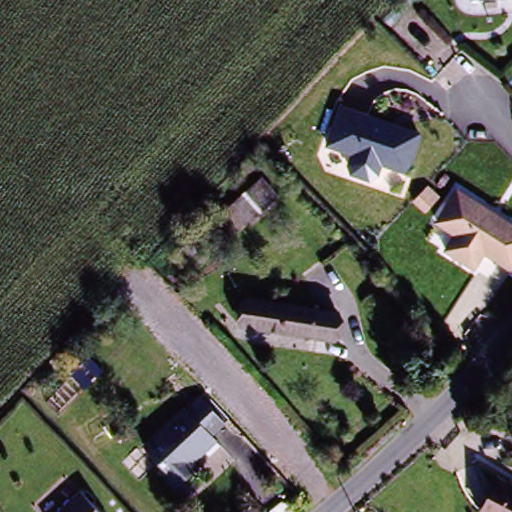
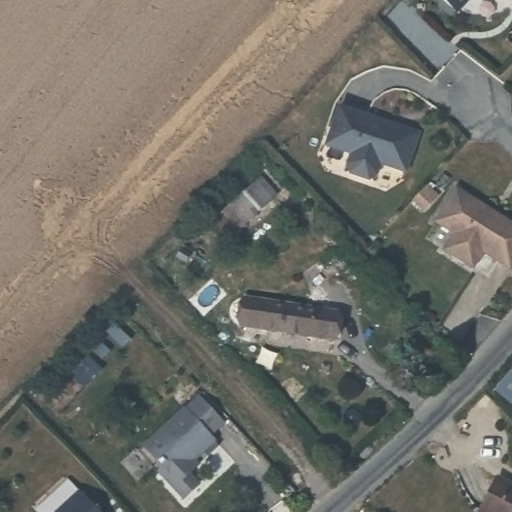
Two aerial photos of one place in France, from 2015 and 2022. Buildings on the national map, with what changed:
unchanged [(421,134),(410,175),(383,164),(370,180),(350,175),(347,167),(347,155),(325,145),(337,100),(421,134)]
unchanged [(294,181),(264,210),(246,189),(274,160),(294,181)]
unchanged [(512,273),(485,255),(475,271),(443,250),(451,235),(434,221),(455,187),(512,224),(512,273)]
unchanged [(325,337),(255,325),(257,312),(240,311),(243,297),(260,300),(330,312),(325,337)]
new [(512,371),(512,407),(493,392),(512,371)]
unchanged [(182,414),(185,416),(203,400),(204,401),(227,425),(208,442),(217,452),(206,461),(202,456),(190,467),(195,472),(186,479),(195,490),(180,504),(165,487),(170,482),(142,451),(182,414)]
unchanged [(512,485),(512,512),(479,512),(497,477),(512,485)]
unchanged [(99,512),(59,512),(81,490),(99,512)]

